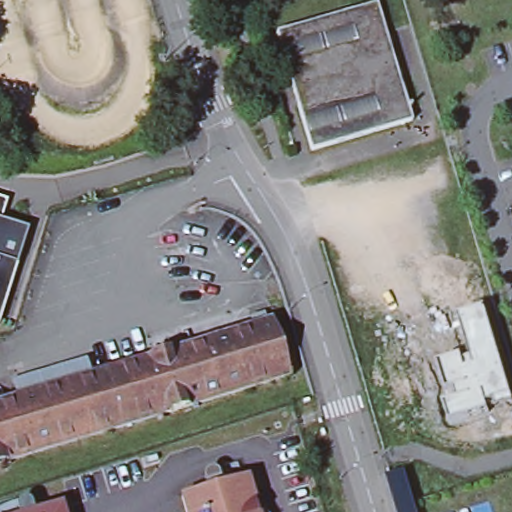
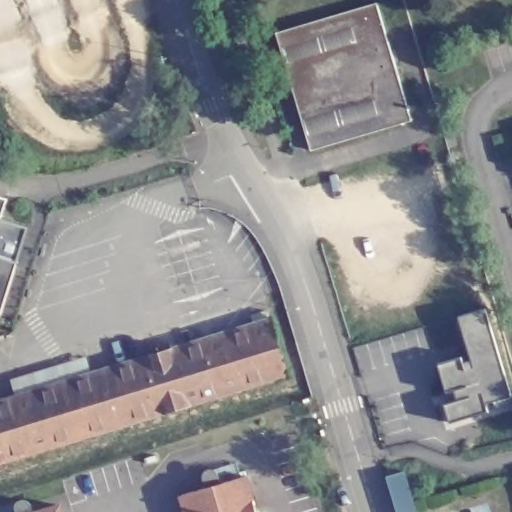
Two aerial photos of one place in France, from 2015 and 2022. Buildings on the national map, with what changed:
unchanged [(411,121),(310,151),(275,34),(375,4),(411,121)]
unchanged [(7,200),(2,217),(25,225),(0,301),(0,198),(7,200)]
unchanged [(488,412),(450,424),(444,404),(457,401),(454,391),(452,392),(445,368),(471,361),(458,317),(485,309),(511,397),(512,400),(512,402),(487,410),(488,412)]
unchanged [(284,376),(0,462),(0,402),(267,320),(284,376)]
unchanged [(395,508),(386,478),(404,473),(413,503),(416,512),(396,512),(395,508)]
unchanged [(178,494),(243,475),(254,512),(183,512),(178,494)]
unchanged [(65,505),(67,512),(41,512),(65,505)]

